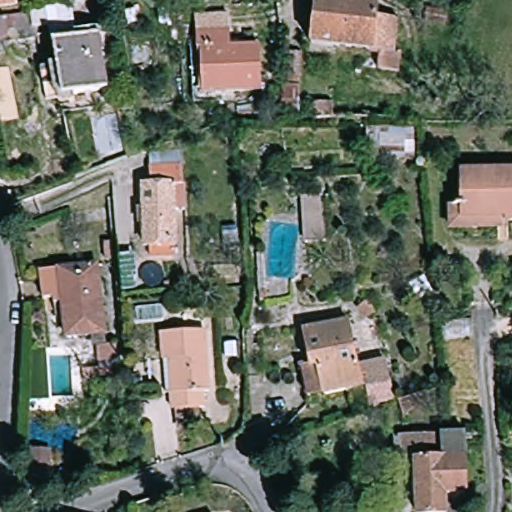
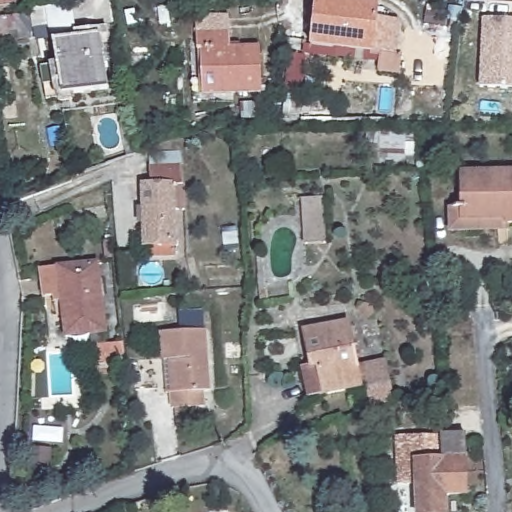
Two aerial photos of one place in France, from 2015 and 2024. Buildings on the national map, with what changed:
unchanged [(378,5),(376,18),(399,22),(395,51),(402,52),(399,73),(377,69),(379,53),(343,47),(311,42),(317,0),(350,0),(378,5)]
unchanged [(73,4),(77,29),(50,32),(47,7),(73,4)]
unchanged [(40,13),(42,25),(15,29),(17,41),(0,43),(0,19),(40,13)]
new [(512,16),(512,86),(481,84),(484,15),(512,16)]
unchanged [(92,35),(92,29),(101,28),(110,88),(67,95),(58,41),(92,35)]
unchanged [(233,33),(233,49),(263,48),(263,92),(204,93),(203,49),(201,49),(201,34),(233,33)]
unchanged [(154,251),(154,240),(149,240),(149,180),(152,180),(153,164),(179,165),(179,169),(189,169),(188,203),(178,203),(179,240),(179,251),(154,251)]
unchanged [(455,204),(466,204),(466,171),(512,170),(512,221),(510,221),(510,230),(456,229),(455,204)]
unchanged [(321,196),(324,241),(304,242),(301,197),(321,196)]
unchanged [(107,323),(67,325),(65,290),(52,291),(50,264),(64,263),(104,261),(107,323)]
unchanged [(354,316),(361,365),(389,357),(397,401),(373,408),(371,387),(308,397),(302,366),(310,365),(303,326),(354,316)]
unchanged [(182,428),(181,409),(178,409),(176,391),(170,392),(168,360),(163,361),(162,332),(211,330),(214,392),(209,392),(210,407),(205,407),(205,427),(182,428)]
unchanged [(432,401),(402,412),(398,400),(428,390),(432,401)]
unchanged [(437,434),(437,430),(444,430),(444,433),(469,433),(471,494),(448,494),(448,512),(418,512),(417,461),(407,461),(406,435),(430,434),(437,434)]

